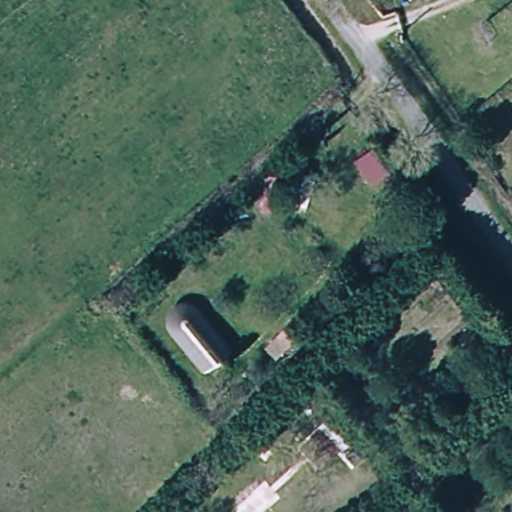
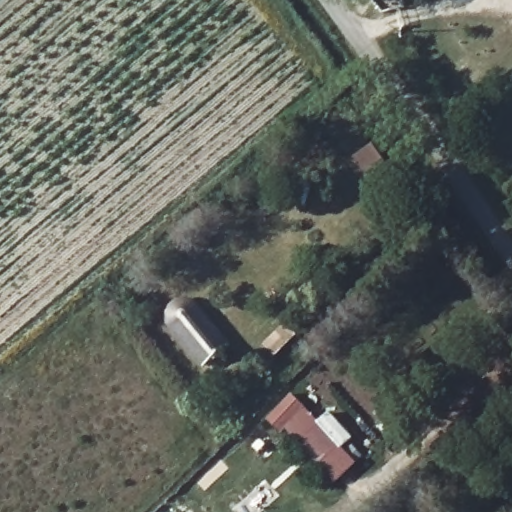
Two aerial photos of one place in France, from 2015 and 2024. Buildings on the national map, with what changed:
unchanged [(171,320),(171,317),(171,313),(173,309),(176,306),(180,304),(183,303),(186,303),(190,305),(193,306),(195,308),(228,350),(206,367),(173,326),(172,325),(171,320)]
new [(293,396),(319,423),(330,413),(354,440),(343,449),(356,464),(338,481),(322,464),(319,467),(286,430),(281,435),(268,420),(293,396)]

